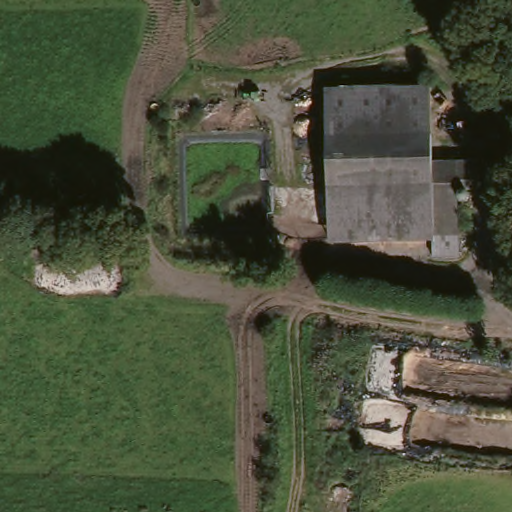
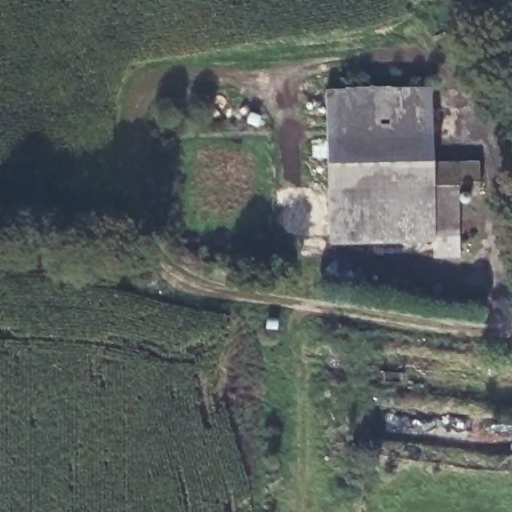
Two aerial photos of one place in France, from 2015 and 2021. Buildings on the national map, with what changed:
unchanged [(321,94),(426,93),(428,167),(427,195),(324,195),(321,94)]
unchanged [(476,167),(477,197),(453,198),(454,243),(427,244),(427,195),(428,167),(476,167)]
unchanged [(325,245),(324,195),(427,195),(427,244),(325,245)]

